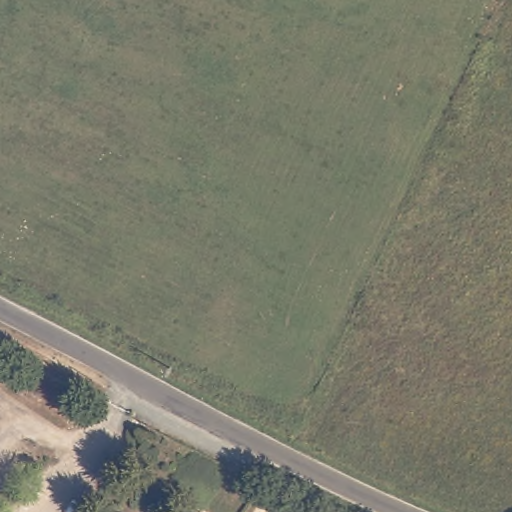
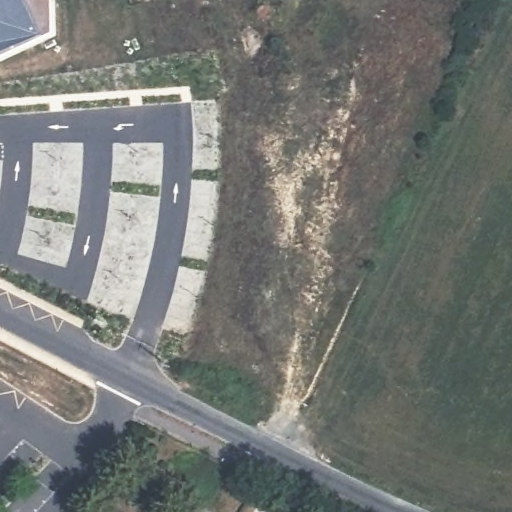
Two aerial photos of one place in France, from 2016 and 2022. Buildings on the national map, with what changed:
new [(0,59),(0,0),(56,0),(56,32),(0,59)]

